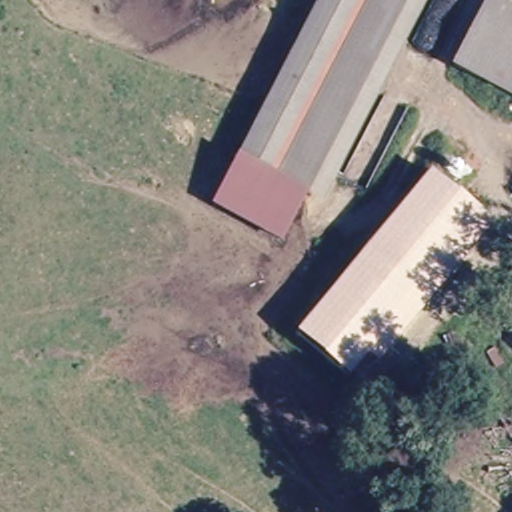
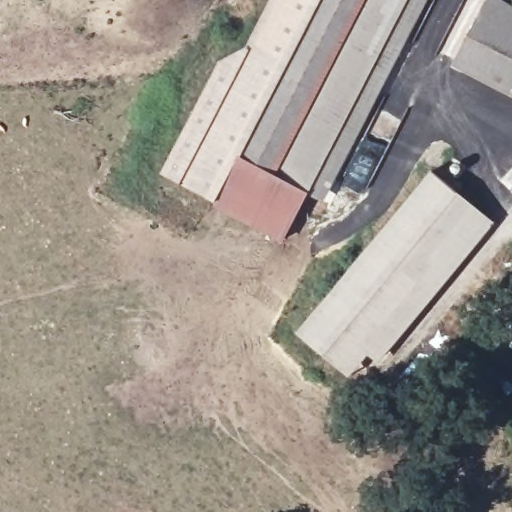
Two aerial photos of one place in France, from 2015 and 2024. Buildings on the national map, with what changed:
new [(218,63),(245,49),(270,0),(316,0),(236,150),(235,154),(214,200),(160,173),(218,63)]
unchanged [(316,0),(407,0),(312,187),(236,150),(316,0)]
unchanged [(407,0),(427,0),(327,195),(312,187),(407,0)]
unchanged [(481,0),(512,16),(512,95),(449,62),(481,0)]
unchanged [(512,0),(512,16),(481,0),(512,0)]
unchanged [(283,179),(310,197),(287,244),(210,208),(235,154),(283,179)]
unchanged [(431,171),(497,223),(358,385),(296,334),(431,171)]

